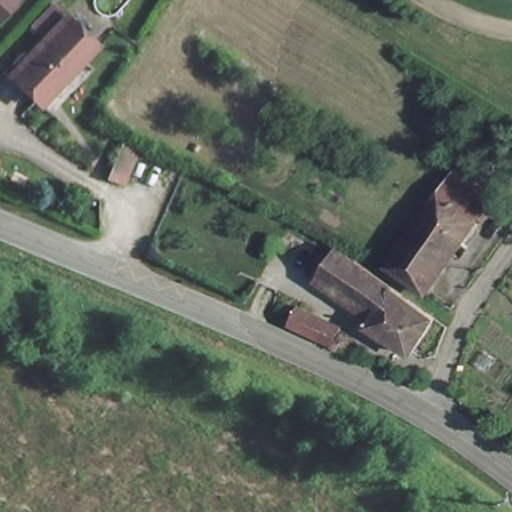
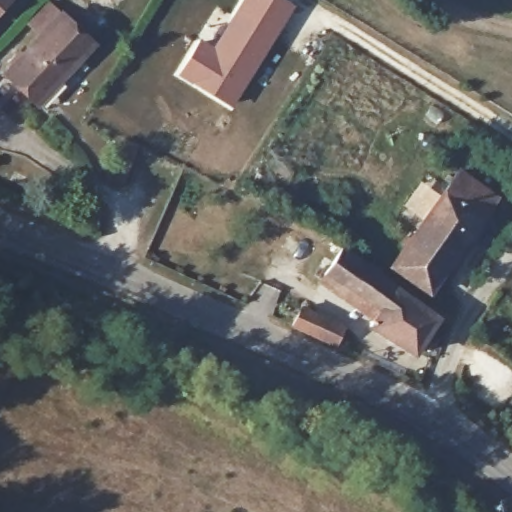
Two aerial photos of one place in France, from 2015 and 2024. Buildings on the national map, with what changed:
unchanged [(0,3),(0,0),(3,0),(0,3)]
new [(229,107),(176,74),(199,37),(213,46),(242,0),(285,0),(293,5),(229,107)]
unchanged [(60,14),(91,43),(63,74),(59,70),(32,99),(4,72),(60,14)]
unchanged [(398,262),(453,188),(466,170),(500,193),(487,211),(433,286),(398,262)]
unchanged [(320,277),(340,248),(393,283),(372,313),(320,277)]
unchanged [(434,311),(412,346),(368,318),(372,313),(393,283),(434,311)]

